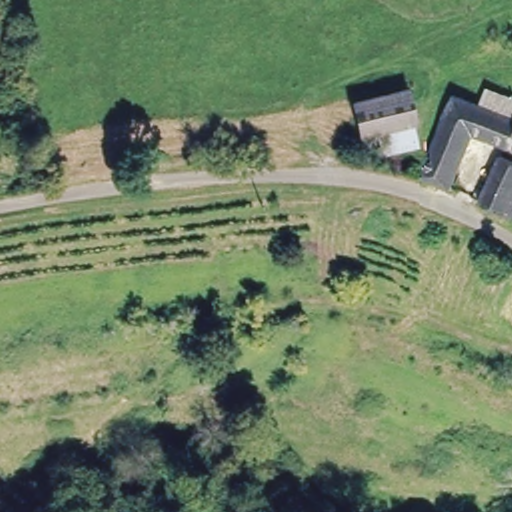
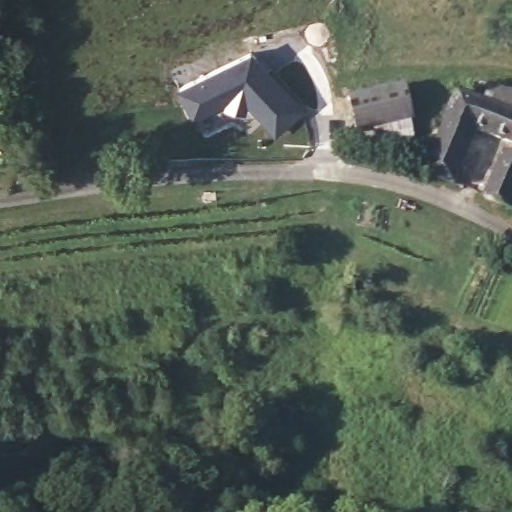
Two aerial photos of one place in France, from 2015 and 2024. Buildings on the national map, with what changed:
new [(174,85),(249,47),(305,108),(275,134),(246,104),(245,111),(224,106),(225,100),(193,119),(174,85)]
unchanged [(376,153),(373,129),(360,131),(353,94),(406,85),(412,123),(416,147),(376,153)]
unchanged [(488,105),(495,88),(512,96),(512,117),(488,105)]
unchanged [(459,91),(488,105),(512,117),(512,145),(476,129),(451,184),(422,169),(459,91)]
unchanged [(470,194),(477,179),(484,183),(497,156),(512,163),(512,214),(492,205),(470,194)]

